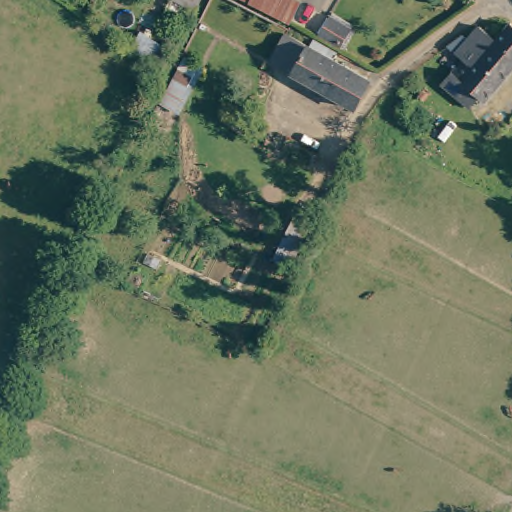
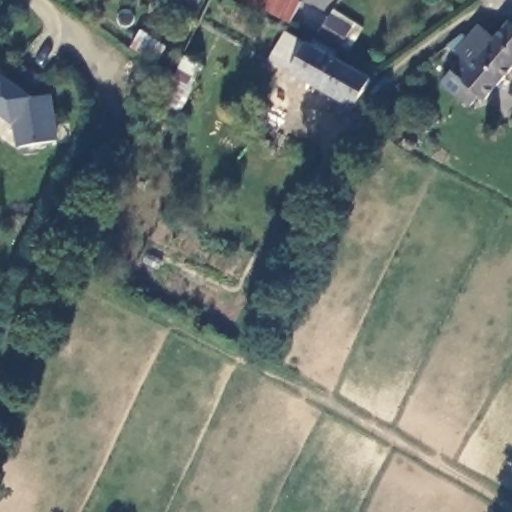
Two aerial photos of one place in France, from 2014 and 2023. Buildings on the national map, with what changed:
unchanged [(176,0),(201,0),(195,11),(176,0)]
unchanged [(293,24),(244,0),(295,0),(303,4),(293,24)]
unchanged [(347,30),(339,47),(317,35),(325,19),(347,30)]
unchanged [(474,28),(489,39),(501,26),(504,22),(512,29),(512,63),(481,101),(472,99),(461,109),(436,86),(454,61),(439,45),(456,34),(463,40),(474,28)]
unchanged [(136,43),(148,26),(178,48),(166,64),(136,43)]
unchanged [(369,84),(355,109),(277,64),(291,39),(369,84)]
new [(13,124),(0,114),(0,65),(2,76),(32,97),(52,94),(60,140),(18,148),(13,124)]

